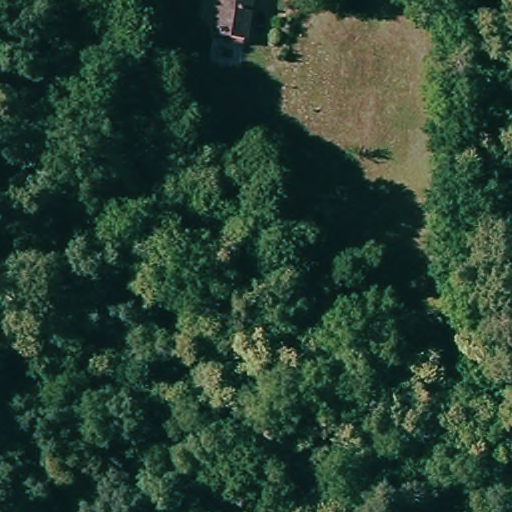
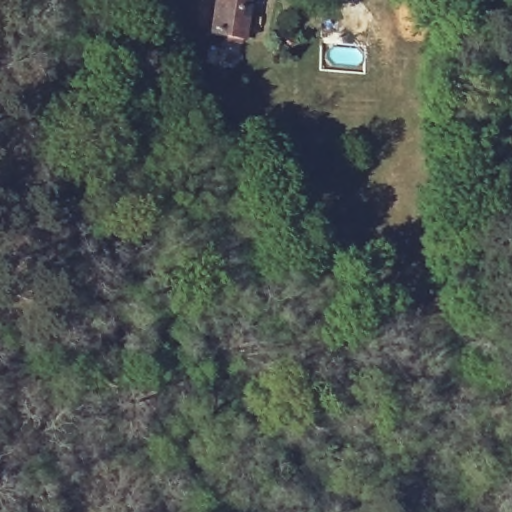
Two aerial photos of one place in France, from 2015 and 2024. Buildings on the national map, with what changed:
unchanged [(226,34),(228,0),(260,0),(255,37),(226,34)]

